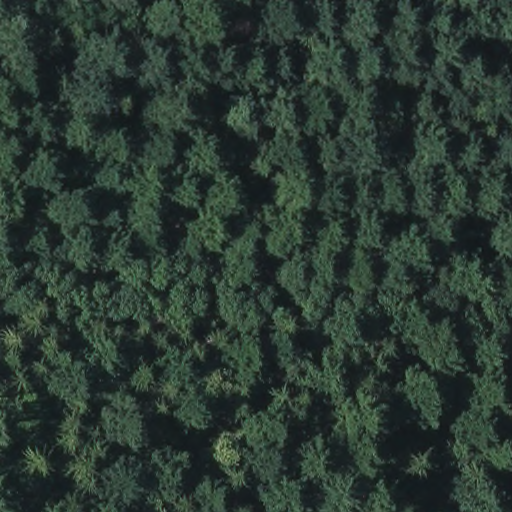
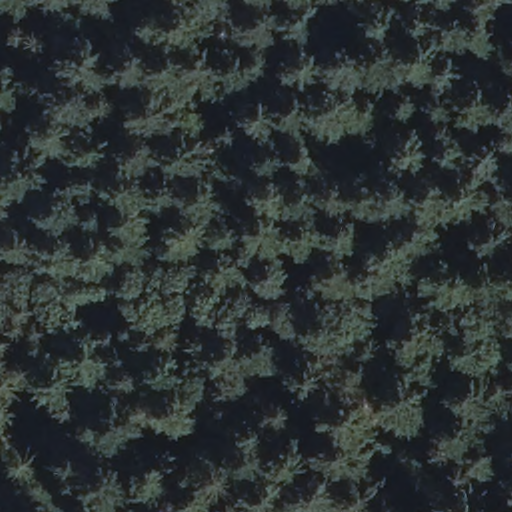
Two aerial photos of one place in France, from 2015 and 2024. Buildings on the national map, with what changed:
[]

